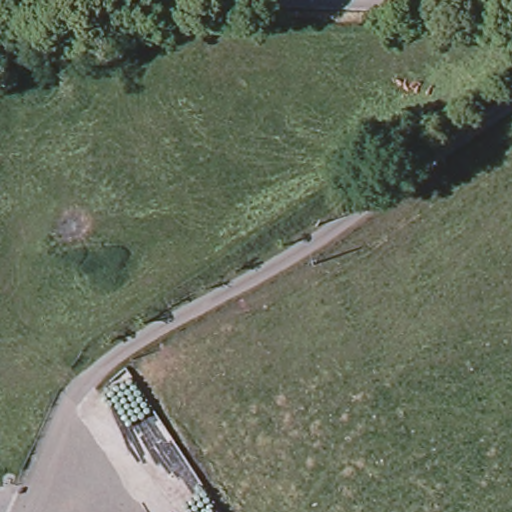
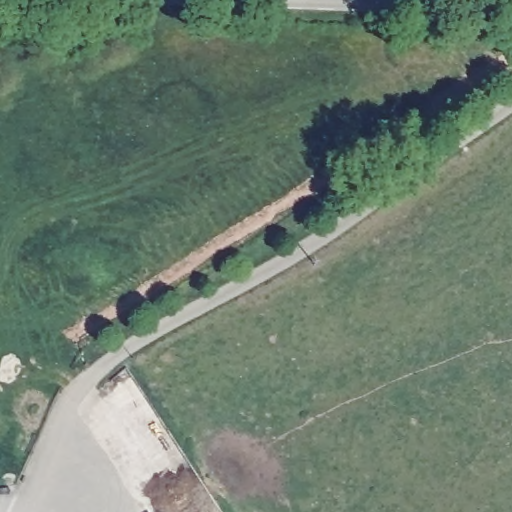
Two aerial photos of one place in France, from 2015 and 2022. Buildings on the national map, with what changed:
[]

